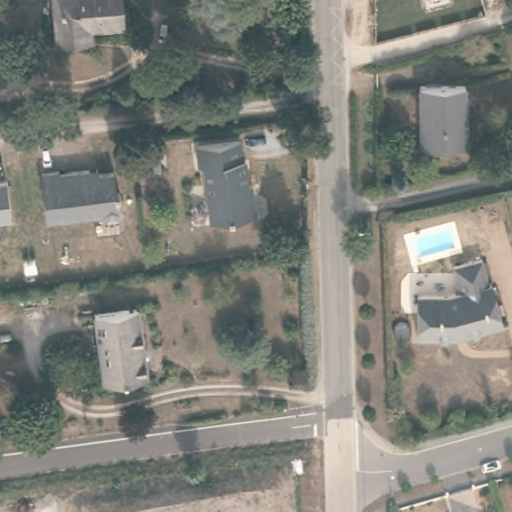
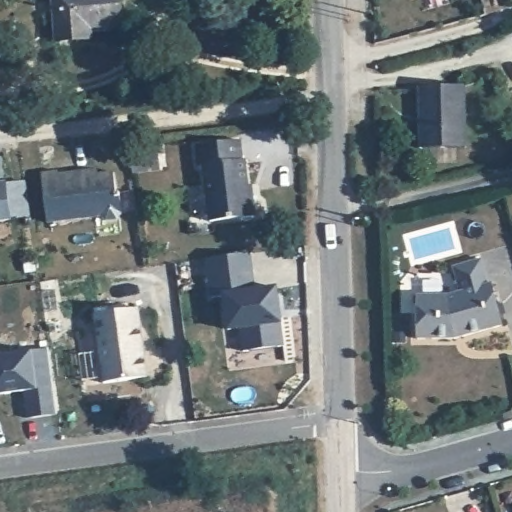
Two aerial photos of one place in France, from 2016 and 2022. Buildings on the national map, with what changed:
unchanged [(80,28),(81,39),(58,41),(55,0),(122,0),(124,26),(80,28)]
unchanged [(423,149),(421,86),(467,85),(469,148),(423,149)]
unchanged [(0,111),(1,123),(0,123),(0,111)]
unchanged [(293,123),(294,150),(274,151),(273,124),(293,123)]
unchanged [(240,142),(249,216),(208,221),(199,148),(240,142)]
unchanged [(59,174),(89,170),(98,169),(99,174),(114,172),(118,193),(120,193),(123,214),(119,219),(107,221),(101,216),(49,223),(43,174),(59,171),(59,174)]
unchanged [(13,221),(0,222),(0,184),(8,183),(13,221)]
new [(205,259),(250,253),(255,291),(278,287),(283,324),(286,347),(242,352),(239,331),(228,332),(223,298),(210,299),(205,259)]
unchanged [(455,347),(413,350),(411,308),(443,306),(456,301),(447,277),(472,267),(481,291),(484,291),(499,331),(455,347)]
unchanged [(105,383),(96,313),(140,308),(149,377),(105,383)]
new [(49,349),(57,416),(26,419),(24,392),(0,395),(0,356),(31,353),(49,349)]

